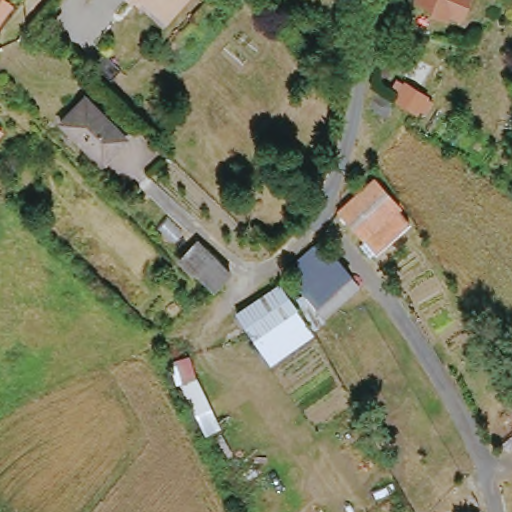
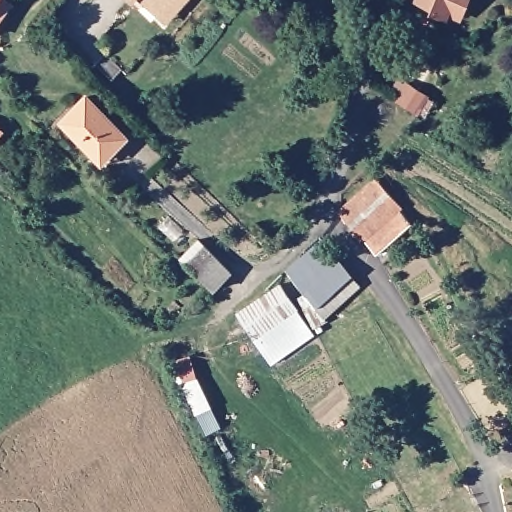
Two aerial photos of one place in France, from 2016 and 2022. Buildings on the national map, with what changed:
unchanged [(0,27),(0,0),(5,0),(15,8),(0,27)]
unchanged [(169,21),(145,0),(188,0),(169,21)]
unchanged [(431,10),(433,5),(419,0),(470,0),(465,16),(450,11),(448,16),(431,10)]
unchanged [(408,82),(427,98),(414,113),(395,97),(408,82)]
unchanged [(61,125),(91,99),(124,139),(95,163),(61,125)]
unchanged [(0,139),(0,128),(5,132),(0,139)]
unchanged [(380,255),(365,242),(345,222),(340,218),(350,209),(375,183),(400,206),(395,212),(409,225),(380,255)]
unchanged [(180,259),(199,241),(230,273),(212,291),(180,259)]
unchanged [(315,271),(332,256),(373,300),(338,332),(338,331),(297,288),(315,271)]
unchanged [(309,326),(271,359),(251,336),(288,303),(307,323),(309,326)]
unchanged [(212,406),(220,427),(207,433),(197,414),(175,364),(190,357),(212,406)]

